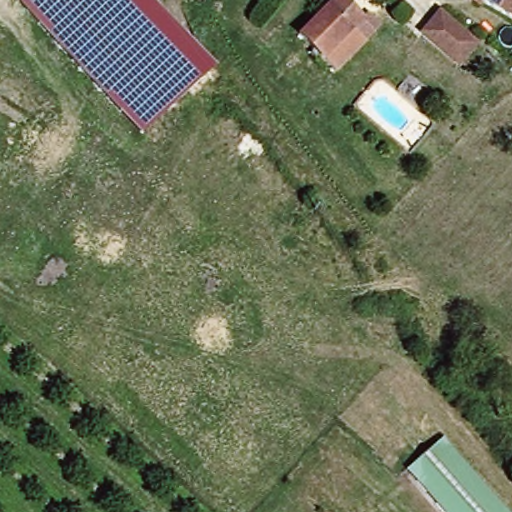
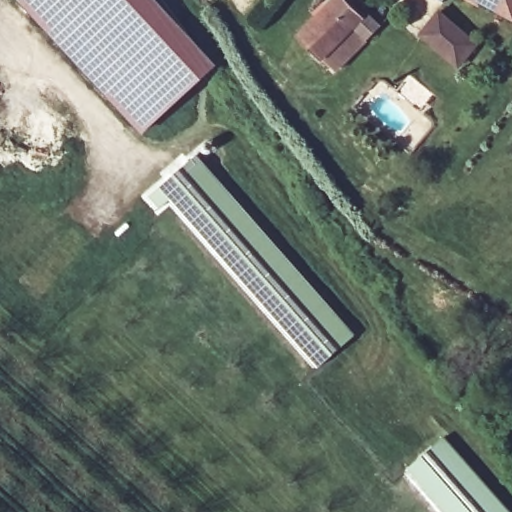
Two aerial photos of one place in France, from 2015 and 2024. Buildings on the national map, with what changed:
unchanged [(217,65),(141,134),(18,0),(156,0),(217,65)]
unchanged [(333,76),(293,39),(329,0),(338,0),(373,32),(333,76)]
unchanged [(512,20),(475,0),(512,0),(512,20)]
unchanged [(447,2),(481,34),(445,74),(412,44),(447,2)]
new [(197,153),(356,334),(318,368),(170,199),(160,207),(150,195),(197,153)]
unchanged [(444,435),(512,511),(512,512),(442,512),(405,470),(444,435)]

